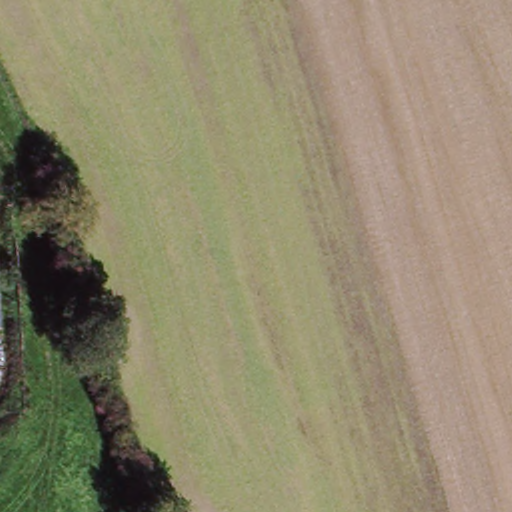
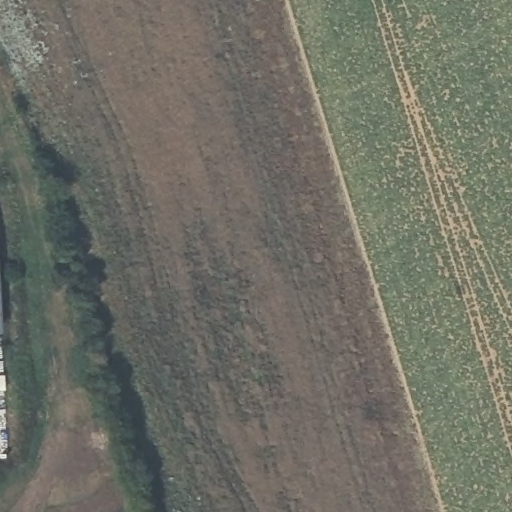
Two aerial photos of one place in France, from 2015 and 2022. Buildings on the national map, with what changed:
unchanged [(0,332),(0,288),(2,332),(0,332)]

